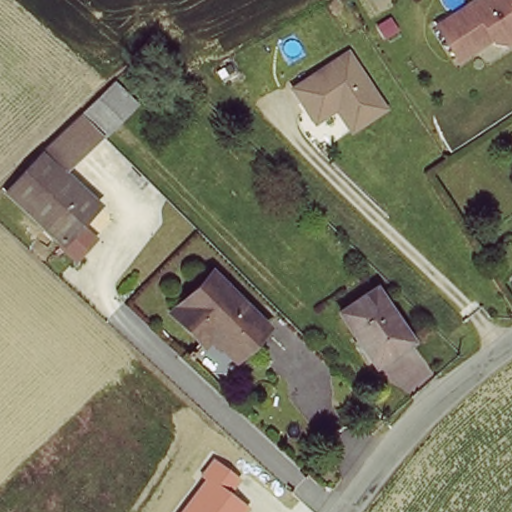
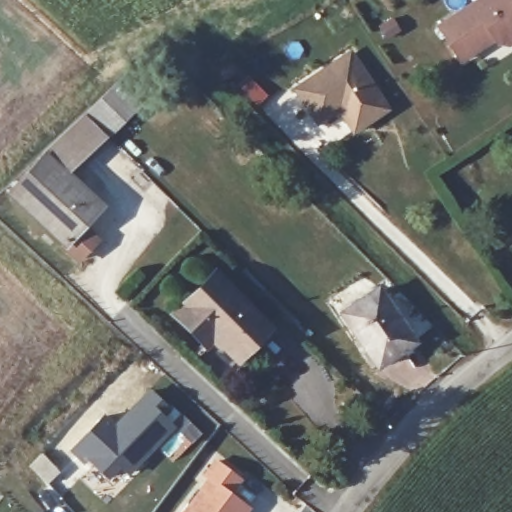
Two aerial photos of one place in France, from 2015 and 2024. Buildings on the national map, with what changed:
unchanged [(433,29),(477,0),(512,0),(512,41),(502,46),(492,44),(490,41),(456,64),(433,29)]
unchanged [(335,110),(314,124),(290,91),(344,54),(382,109),(349,131),(335,110)]
unchanged [(141,104),(108,137),(83,112),(108,89),(117,80),(141,104)]
unchanged [(83,112),(108,137),(71,175),(48,154),(44,149),(83,112)]
unchanged [(71,175),(104,209),(84,229),(98,243),(79,262),(64,247),(65,245),(12,191),(48,154),(71,175)]
unchanged [(207,339),(175,308),(212,269),(267,324),(240,350),(216,329),(207,339)]
unchanged [(346,318),(381,295),(411,346),(377,368),(346,318)]
new [(119,467),(105,481),(87,461),(87,460),(83,465),(70,451),(105,413),(114,423),(148,388),(171,411),(164,418),(175,427),(128,474),(119,467)]
unchanged [(249,512),(183,512),(206,481),(201,476),(215,459),(242,480),(232,494),(251,509),(249,512)]

